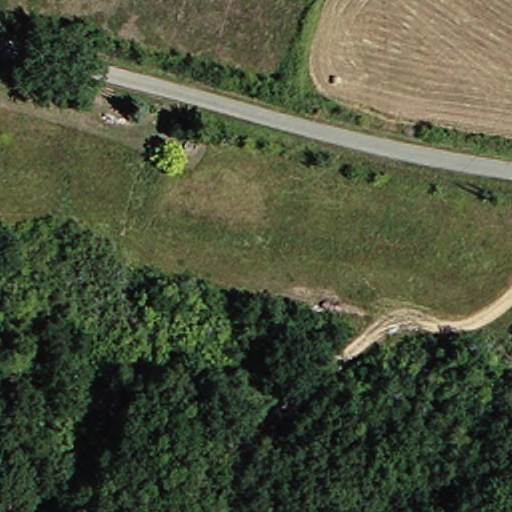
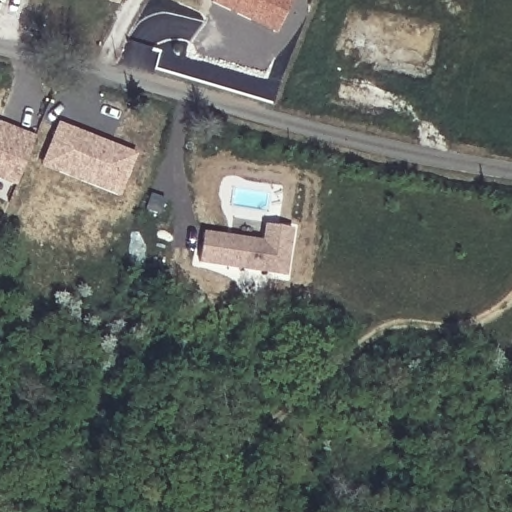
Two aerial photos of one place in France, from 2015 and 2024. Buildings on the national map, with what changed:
new [(275,36),(211,4),(212,0),(292,0),(275,36)]
new [(0,183),(0,124),(35,139),(14,189),(0,183)]
new [(118,199),(39,167),(56,124),(136,157),(118,199)]
new [(264,227),(293,231),(286,278),(199,265),(204,232),(261,241),(264,227)]

